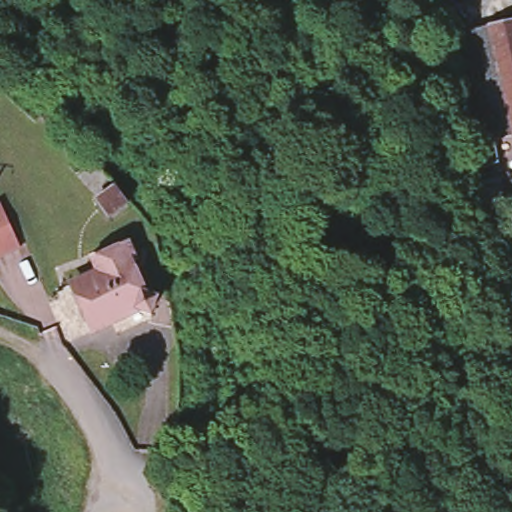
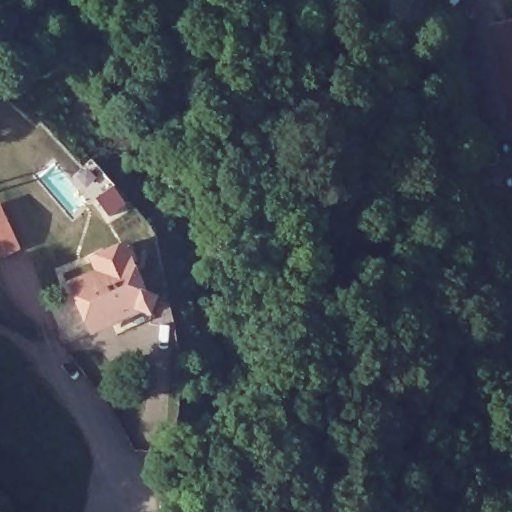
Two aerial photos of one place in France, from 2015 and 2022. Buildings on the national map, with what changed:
unchanged [(505,78),(491,24),(512,19),(512,76),(505,78)]
unchanged [(505,78),(512,109),(512,131),(497,135),(472,29),(491,24),(505,78)]
unchanged [(512,76),(512,109),(505,78),(512,76)]
unchanged [(511,201),(485,206),(472,140),(497,135),(511,201)]
unchanged [(110,179),(92,194),(76,176),(94,160),(110,179)]
unchanged [(0,258),(0,203),(3,202),(23,249),(0,258)]
unchanged [(126,239),(133,254),(129,256),(144,289),(156,294),(148,314),(137,305),(90,326),(70,281),(72,280),(66,267),(126,239)]

